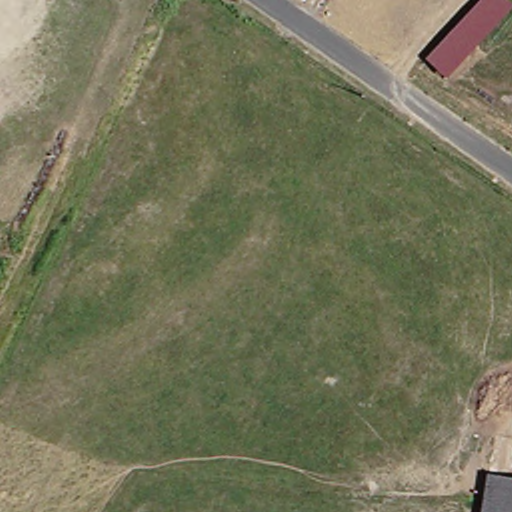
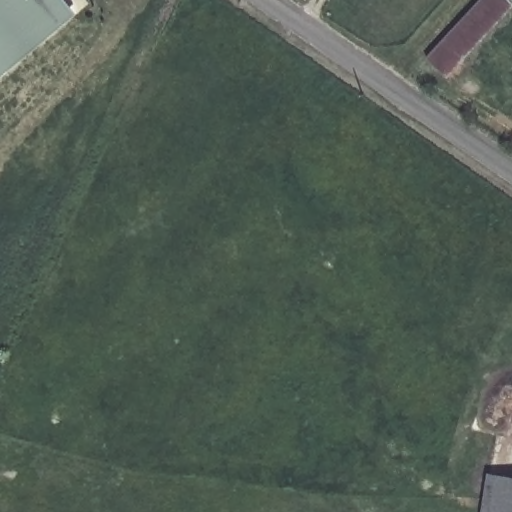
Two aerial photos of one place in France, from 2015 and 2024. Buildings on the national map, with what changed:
new [(66,0),(77,14),(0,79),(0,0),(66,0)]
unchanged [(512,6),(446,79),(428,64),(483,0),(508,0),(512,4),(512,6)]
unchanged [(478,476),(512,481),(512,512),(472,512),(478,476)]

